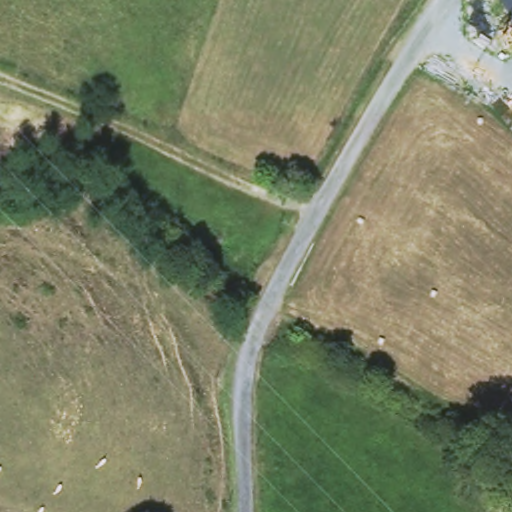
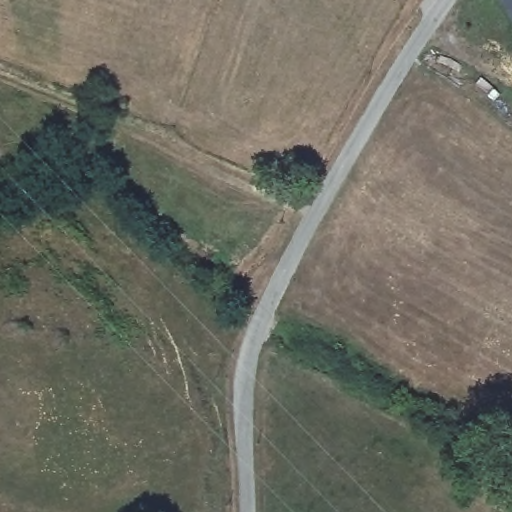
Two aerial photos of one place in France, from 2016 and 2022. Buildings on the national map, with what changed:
unchanged [(512,0),(512,20),(501,0),(512,0)]

